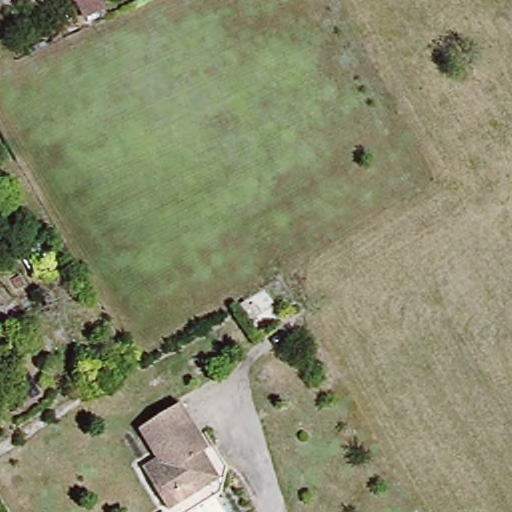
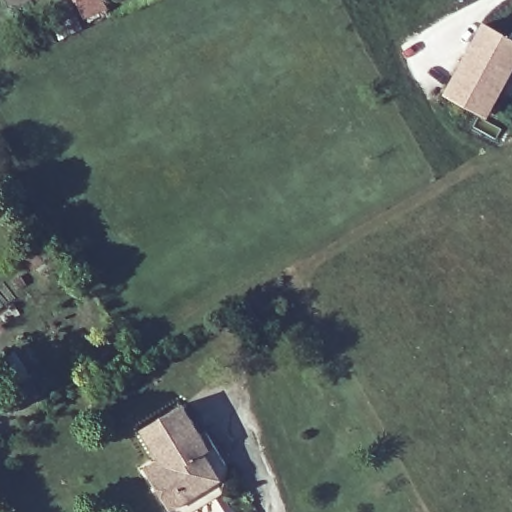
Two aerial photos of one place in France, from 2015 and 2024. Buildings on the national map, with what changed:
unchanged [(85,17),(77,0),(100,0),(104,8),(85,17)]
new [(512,72),(487,118),(444,94),(482,22),(512,38),(512,72)]
unchanged [(156,460),(137,428),(178,404),(198,437),(193,441),(212,466),(206,484),(169,509),(153,482),(144,468),(156,460)]

